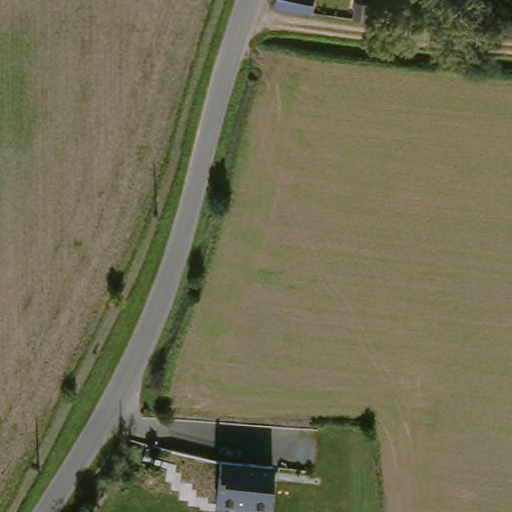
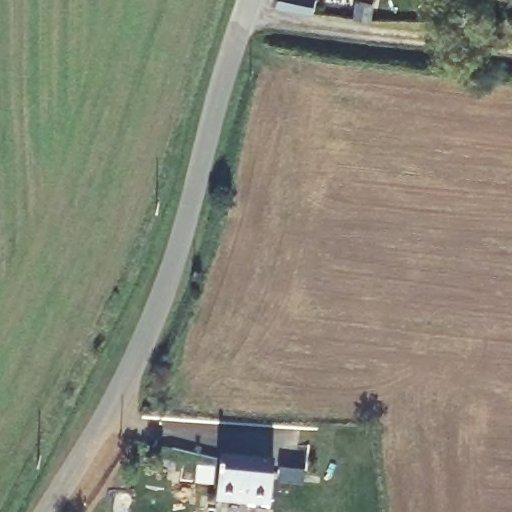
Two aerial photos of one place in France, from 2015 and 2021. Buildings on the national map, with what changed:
unchanged [(284,0),(318,0),(316,10),(282,3),(284,0)]
unchanged [(355,17),(357,1),(373,2),(372,18),(355,17)]
unchanged [(224,500),(227,460),(280,464),(277,508),(255,507),(255,503),(224,500)]

